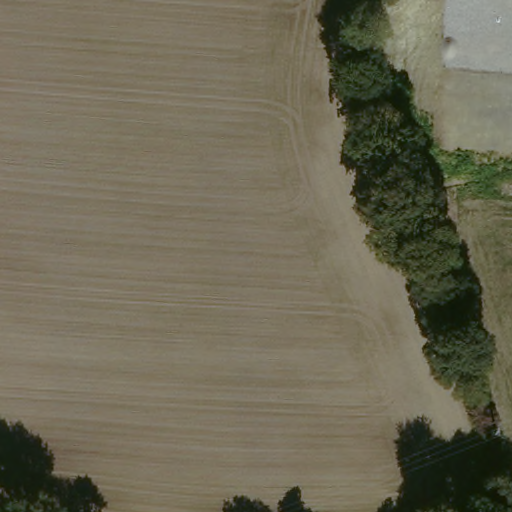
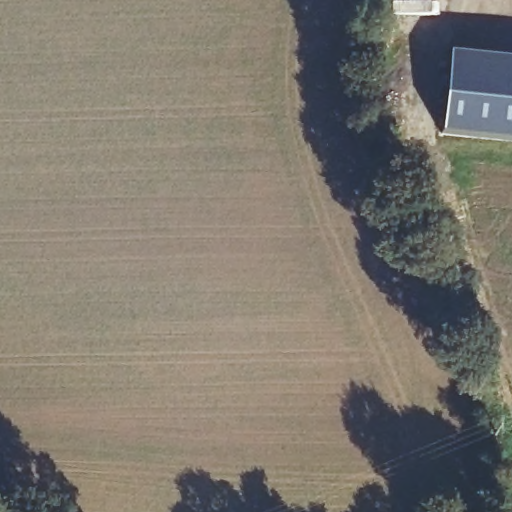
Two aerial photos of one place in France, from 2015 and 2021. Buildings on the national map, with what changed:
new [(442,137),(449,55),(512,61),(512,144),(442,137)]

